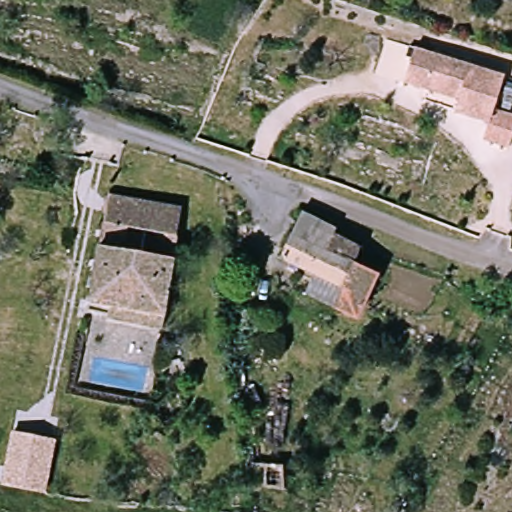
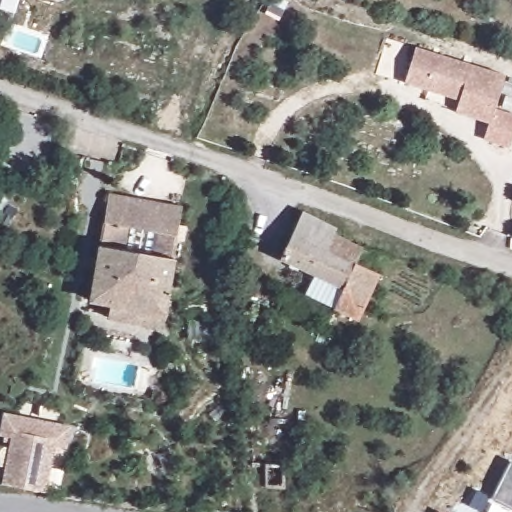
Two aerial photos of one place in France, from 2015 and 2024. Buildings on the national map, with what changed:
new [(56,1),(53,0),(56,0),(56,1)]
unchanged [(416,47),(503,76),(493,109),(512,116),(512,136),(508,150),(482,140),(488,122),(455,112),(459,100),(428,89),(405,81),(416,47)]
unchanged [(180,201),(177,235),(105,229),(107,196),(180,201)]
unchanged [(321,259),(333,265),(341,246),(361,256),(355,269),(376,280),(355,320),(304,295),(313,277),(281,260),(304,217),(334,233),(321,259)]
unchanged [(108,325),(110,310),(90,309),(95,245),(171,251),(166,315),(165,328),(108,325)]
unchanged [(16,436),(58,441),(52,495),(10,491),(16,436)]
new [(492,497),(511,461),(512,462),(512,508),(492,497)]

